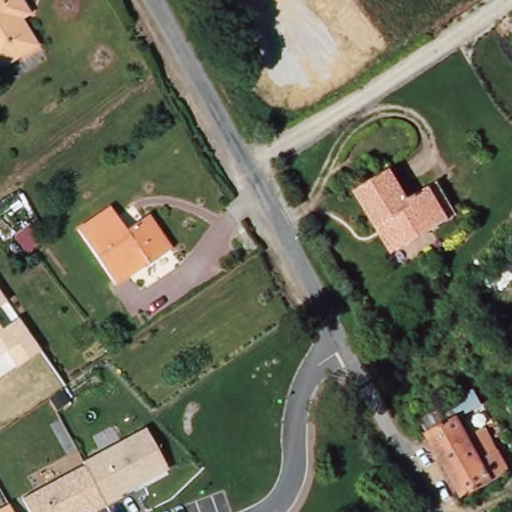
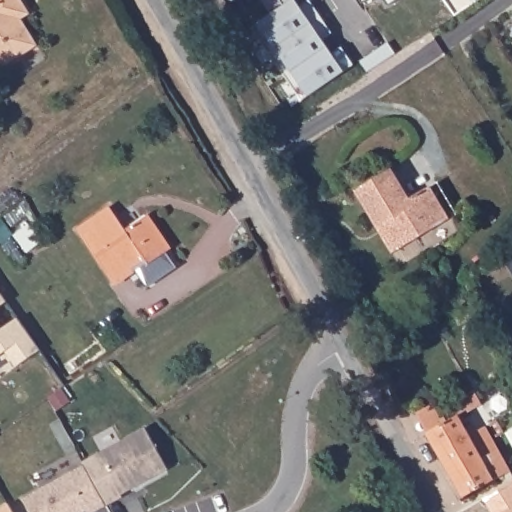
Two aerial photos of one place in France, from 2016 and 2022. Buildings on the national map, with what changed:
unchanged [(20,14),(36,40),(0,62),(0,0),(23,0),(29,9),(20,14)]
new [(258,22),(291,0),(296,0),(299,5),(307,0),(310,0),(330,31),(321,38),(332,53),(342,47),(353,65),(344,71),(307,96),(258,22)]
unchanged [(223,28),(234,51),(222,55),(212,32),(223,28)]
unchanged [(373,229),(359,205),(350,190),(386,170),(404,199),(433,182),(452,214),(395,249),(387,254),(373,229)]
unchanged [(110,207),(126,230),(147,215),(170,249),(148,265),(147,263),(115,285),(78,230),(110,207)]
unchanged [(0,294),(6,303),(0,308),(0,294)]
unchanged [(39,350),(14,367),(4,352),(0,355),(0,328),(18,319),(39,350)]
unchanged [(485,495),(481,488),(463,497),(461,493),(459,489),(420,420),(475,390),(482,405),(459,417),(470,435),(497,420),(505,433),(493,438),(510,471),(492,481),(496,489),(485,495)]
unchanged [(170,470),(106,503),(82,463),(149,428),(170,470)]
unchanged [(106,503),(92,512),(86,512),(86,511),(85,512),(30,512),(22,500),(84,467),(106,503)]
unchanged [(0,510),(10,505),(14,512),(0,512),(0,510)]
unchanged [(512,509),(512,512),(507,512),(512,509)]

